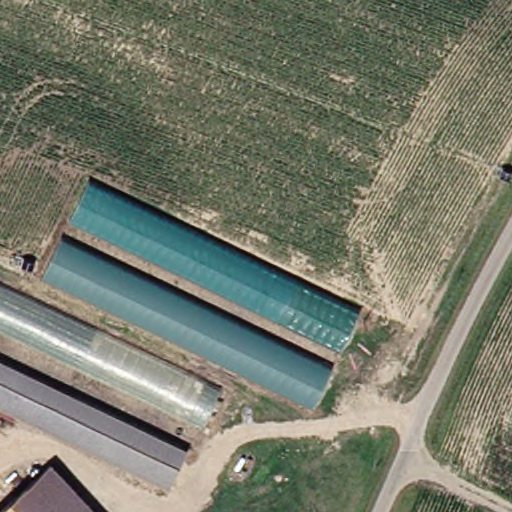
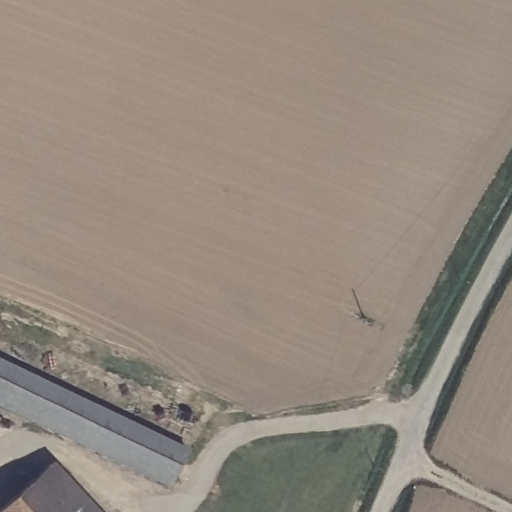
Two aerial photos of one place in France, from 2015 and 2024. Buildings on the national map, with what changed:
demolished [(363,302),(315,400),(44,271),(90,171),(363,302)]
demolished [(202,424),(0,325),(0,281),(221,385),(202,424)]
unchanged [(189,445),(170,482),(0,401),(0,356),(189,445)]
unchanged [(100,512),(0,512),(0,510),(49,461),(100,512)]

